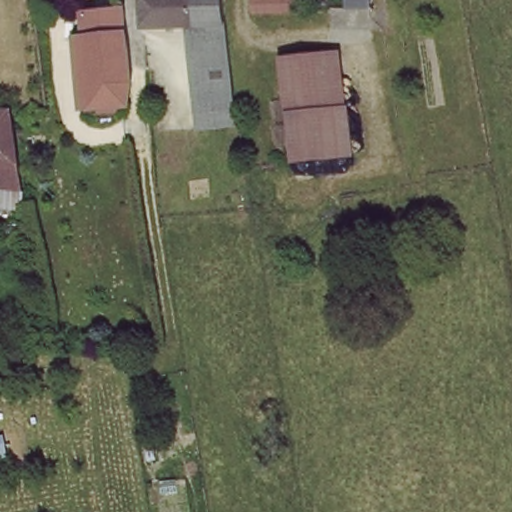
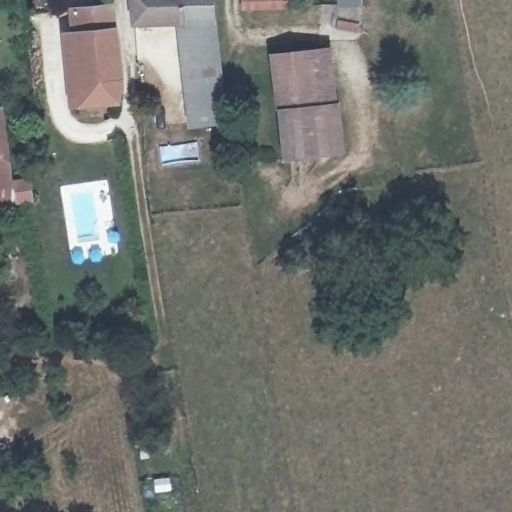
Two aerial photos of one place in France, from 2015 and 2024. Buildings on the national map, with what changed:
unchanged [(176,20),(128,22),(126,0),(177,0),(178,20),(176,20)]
unchanged [(177,0),(208,0),(209,4),(211,19),(178,20),(177,0)]
unchanged [(240,13),(240,0),(296,0),(296,10),(240,13)]
unchanged [(341,5),(340,0),(360,0),(361,5),(341,5)]
unchanged [(113,57),(113,65),(115,86),(114,90),(111,109),(76,111),(70,40),(67,17),(106,11),(106,13),(108,25),(109,36),(112,52),(113,57)]
unchanged [(178,20),(211,19),(215,51),(223,118),(191,122),(176,20),(178,20)]
unchanged [(317,54),(324,104),(331,157),(290,163),(283,109),(276,59),(317,54)]
unchanged [(0,152),(0,142),(1,152),(0,152)]
unchanged [(5,179),(6,180),(8,191),(10,200),(0,198),(0,152),(1,152),(5,179)]

